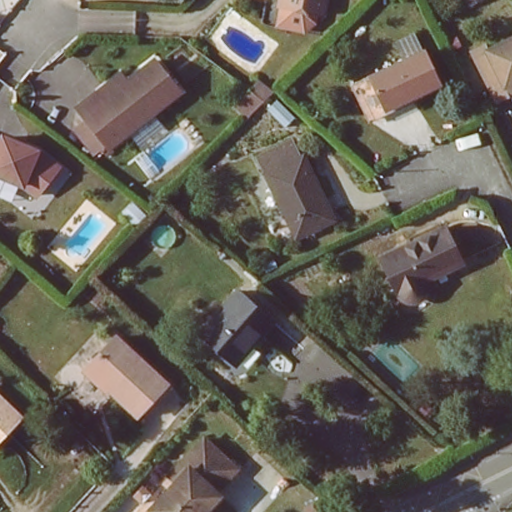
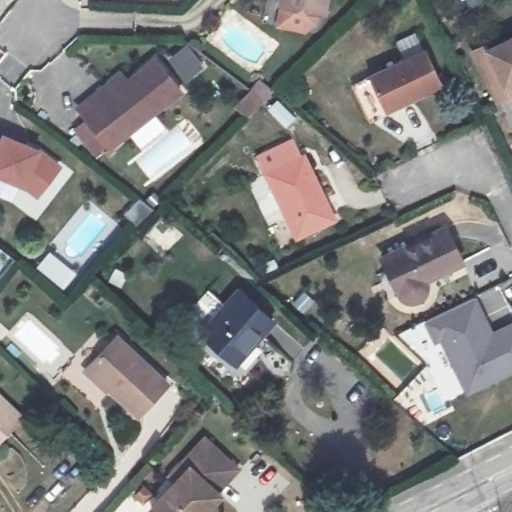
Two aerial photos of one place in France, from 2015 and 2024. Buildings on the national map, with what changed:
unchanged [(279,1),(280,0),(325,0),(323,10),(279,1)]
unchanged [(466,49),(512,27),(512,98),(494,105),(466,49)]
unchanged [(428,48),(444,82),(370,117),(355,84),(428,48)]
unchanged [(176,90),(107,146),(75,108),(95,92),(118,72),(124,80),(151,59),(176,90)]
unchanged [(7,136),(10,128),(45,142),(65,158),(44,186),(30,175),(0,164),(0,133),(7,136)]
unchanged [(299,154),(304,154),(336,222),(295,243),(257,154),(292,137),(299,154)]
unchanged [(451,261),(415,279),(416,282),(416,287),(415,291),(411,295),(407,298),(403,300),(400,301),(396,300),(393,297),(388,291),(371,257),(435,226),(451,261)]
unchanged [(236,292),(271,323),(235,366),(199,336),(236,292)]
new [(496,332),(512,325),(512,377),(468,397),(443,343),(436,346),(425,322),(479,296),(496,332)]
unchanged [(117,336),(167,382),(137,414),(87,368),(117,336)]
unchanged [(22,417),(17,422),(0,440),(0,397),(22,417)]
unchanged [(237,472),(216,494),(220,498),(207,512),(152,512),(150,511),(177,484),(170,478),(181,467),(205,442),(237,472)]

